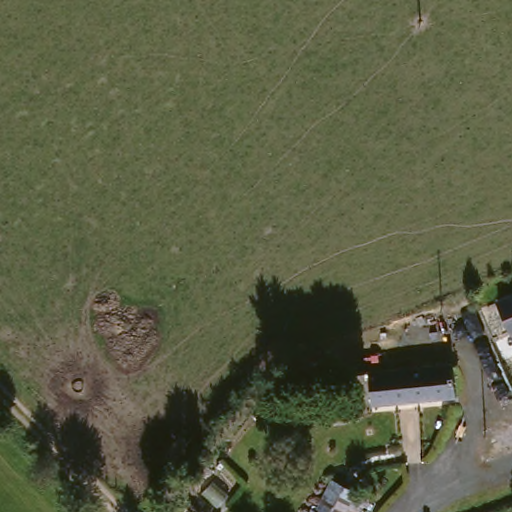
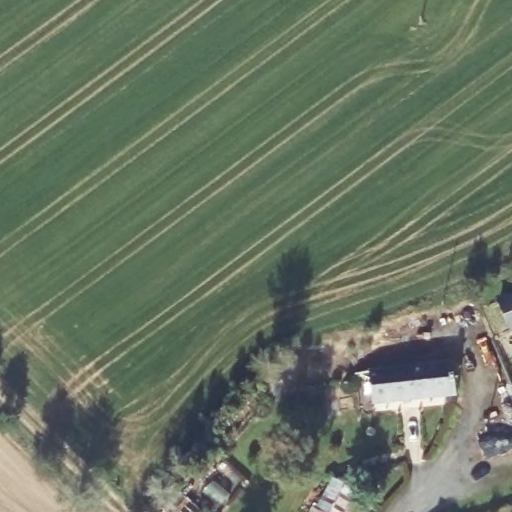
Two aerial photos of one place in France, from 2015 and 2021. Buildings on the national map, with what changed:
unchanged [(512,297),(512,331),(499,302),(512,297)]
unchanged [(368,373),(452,363),(456,397),(373,406),(368,373)]
unchanged [(361,505),(357,512),(310,512),(323,485),(361,505)]

